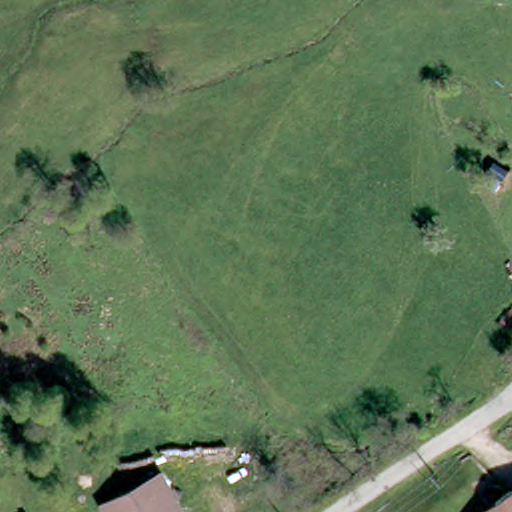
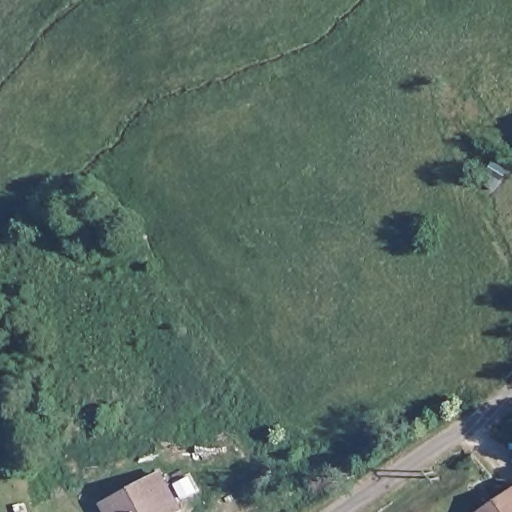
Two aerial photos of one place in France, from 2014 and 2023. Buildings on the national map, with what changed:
unchanged [(112,512),(108,505),(168,474),(184,501),(169,510),(170,512),(112,512)]
unchanged [(503,488),(512,482),(512,512),(481,512),(507,493),(503,488)]
unchanged [(476,506),(480,512),(468,512),(468,511),(476,506)]

